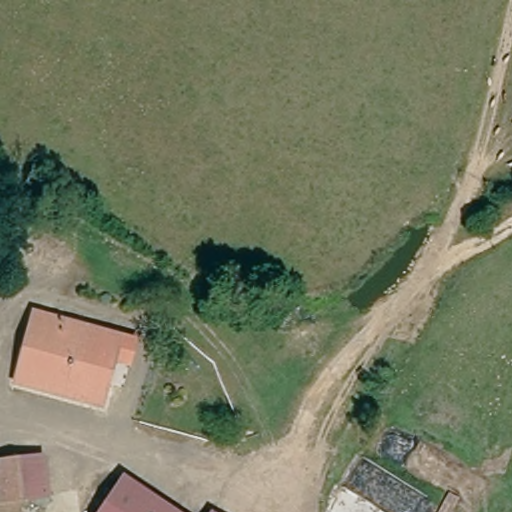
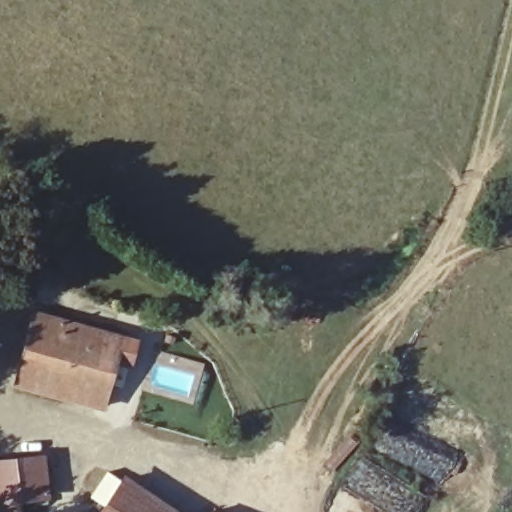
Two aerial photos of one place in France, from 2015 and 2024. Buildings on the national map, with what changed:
unchanged [(99,410),(13,386),(33,315),(119,340),(133,344),(132,345),(125,370),(111,365),(99,410)]
unchanged [(50,498),(28,500),(29,512),(0,512),(0,464),(45,458),(50,498)]
unchanged [(121,475),(148,492),(160,500),(179,512),(99,512),(121,475)]

